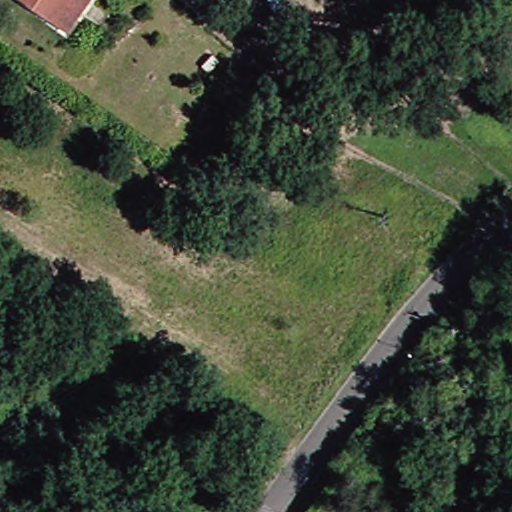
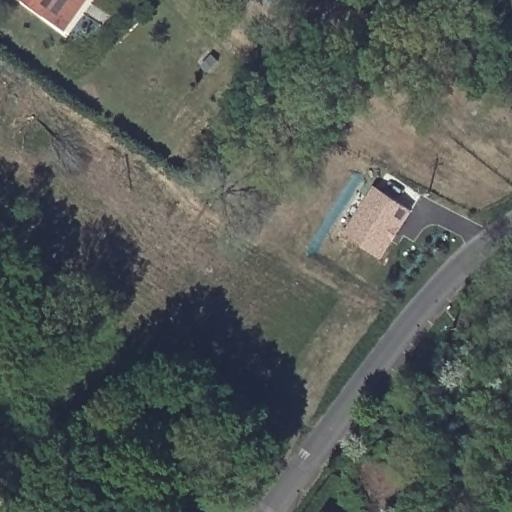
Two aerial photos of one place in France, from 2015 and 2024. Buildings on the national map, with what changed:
unchanged [(61,30),(19,0),(83,0),(61,30)]
unchanged [(504,35),(512,31),(512,47),(510,47),(504,35)]
new [(340,238),(370,188),(407,211),(377,260),(340,238)]
unchanged [(0,512),(0,495),(8,500),(1,512),(0,512)]
unchanged [(34,512),(33,512),(33,511),(34,512)]

